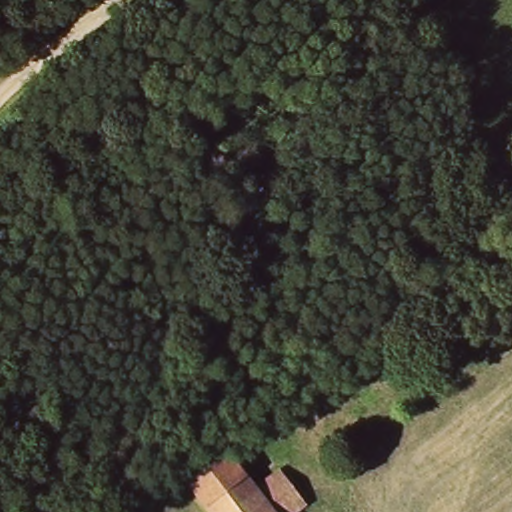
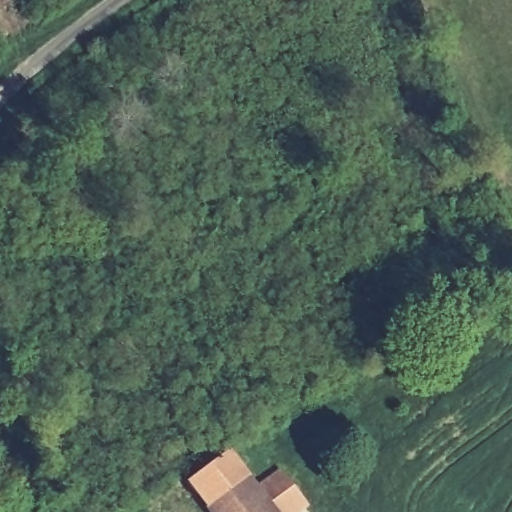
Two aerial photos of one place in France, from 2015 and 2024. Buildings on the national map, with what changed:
unchanged [(234,461),(257,494),(282,479),(306,511),(304,512),(205,512),(188,489),(234,461)]

